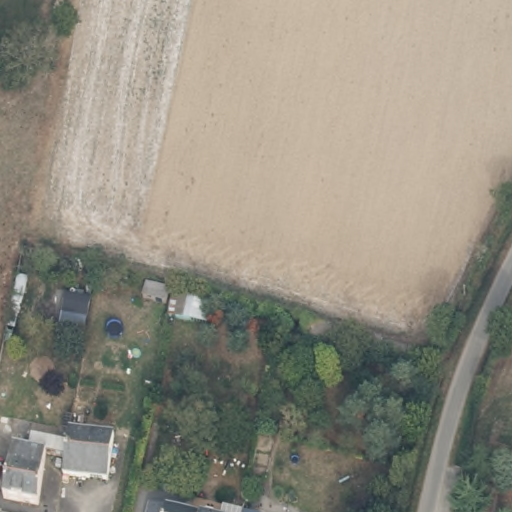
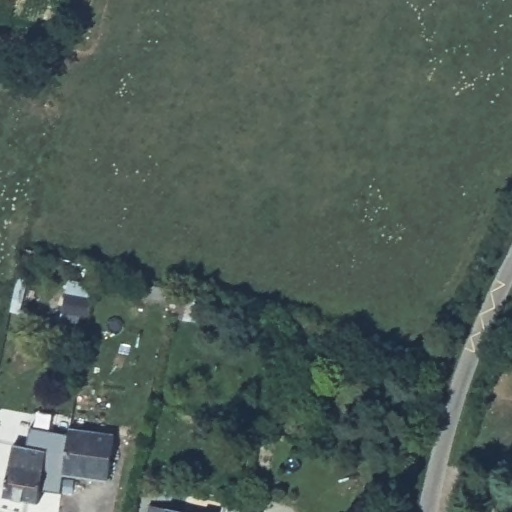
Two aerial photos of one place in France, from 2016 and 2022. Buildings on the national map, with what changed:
unchanged [(168,307),(144,302),(148,284),(177,290),(176,294),(213,301),(209,326),(168,317),(168,307)]
unchanged [(438,374),(292,335),(296,320),(444,356),(438,374)]
unchanged [(62,472),(64,458),(49,455),(40,506),(7,499),(17,448),(29,450),(32,436),(68,443),(71,429),(84,432),(75,475),(62,472)]
unchanged [(75,475),(84,432),(115,438),(106,481),(75,475)]
unchanged [(221,505),(244,509),(244,512),(220,512),(221,505)]
unchanged [(148,506),(181,512),(147,512),(148,506)]

